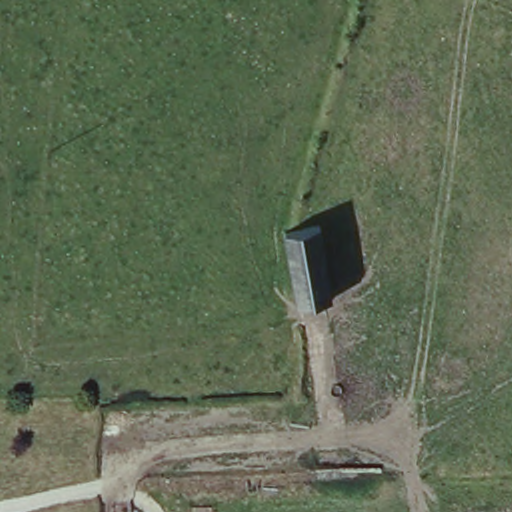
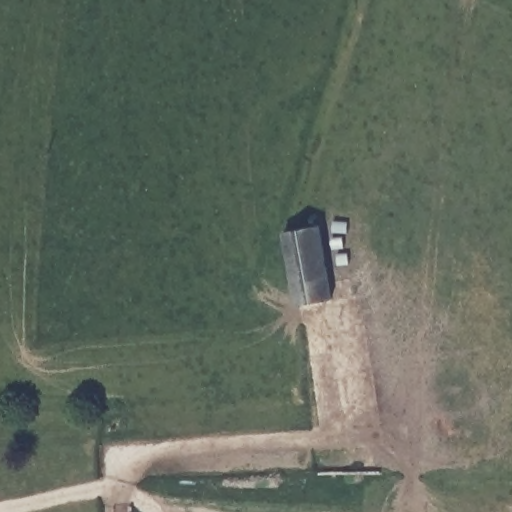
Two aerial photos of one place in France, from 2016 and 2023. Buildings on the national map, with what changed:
unchanged [(292,299),(278,227),(291,224),(314,220),(327,294),(297,299),(292,299)]

